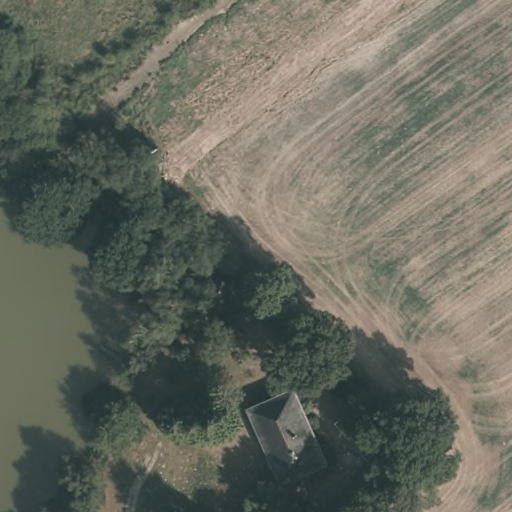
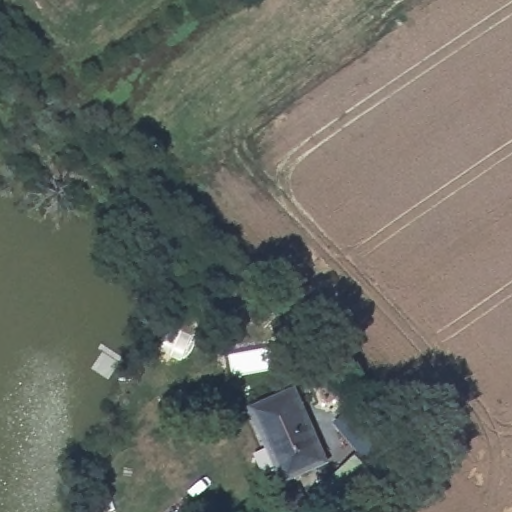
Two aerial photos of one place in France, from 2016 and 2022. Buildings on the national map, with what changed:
unchanged [(296,384),(329,456),(286,476),(253,403),(296,384)]

